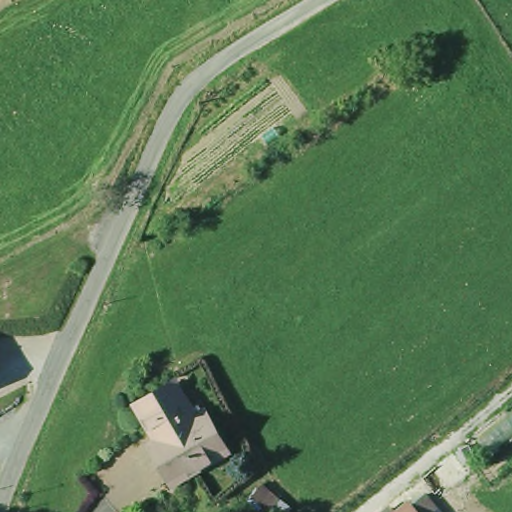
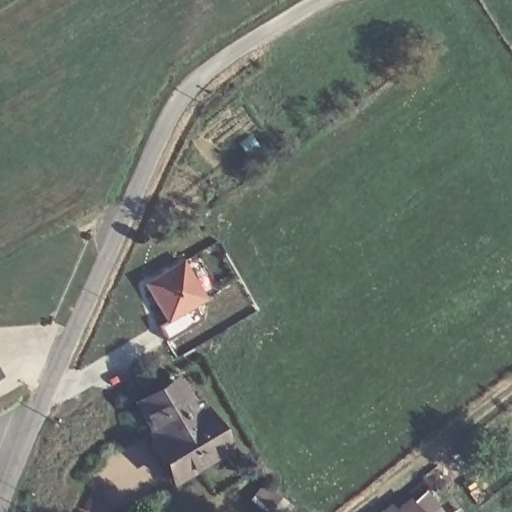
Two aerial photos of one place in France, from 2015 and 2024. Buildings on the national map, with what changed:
new [(185,260),(210,302),(170,325),(146,285),(185,260)]
unchanged [(177,482),(155,444),(161,441),(140,407),(179,384),(200,419),(207,414),(212,421),(230,451),(177,482)]
unchanged [(410,496),(423,512),(394,512),(410,496)]
unchanged [(387,507),(392,512),(381,512),(387,507)]

